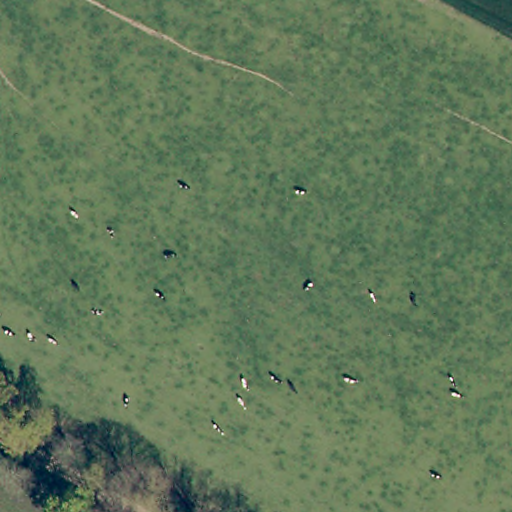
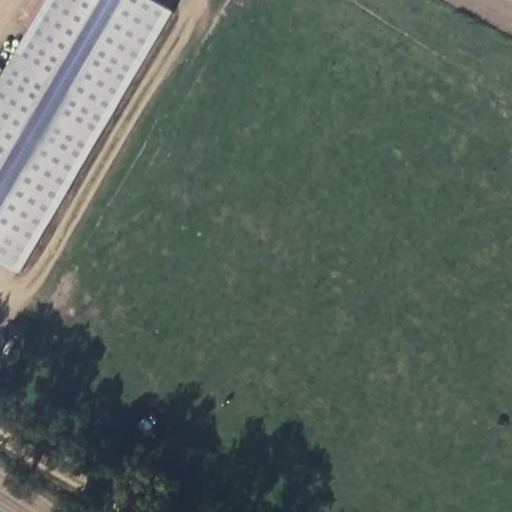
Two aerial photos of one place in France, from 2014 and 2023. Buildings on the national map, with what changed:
new [(0,258),(0,66),(7,70),(49,0),(154,0),(175,12),(22,272),(0,258)]

